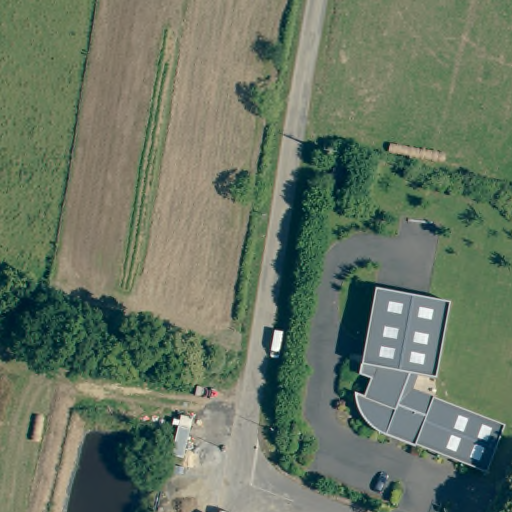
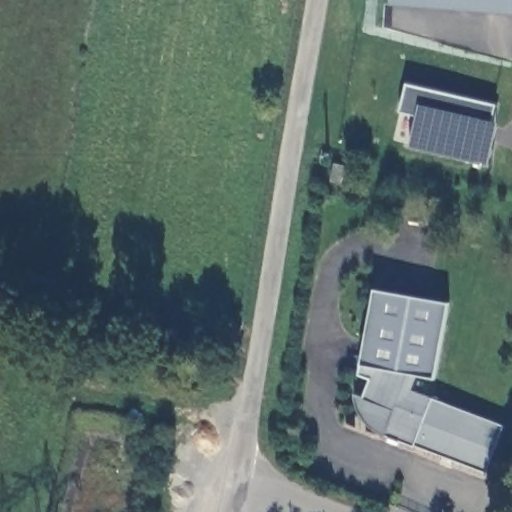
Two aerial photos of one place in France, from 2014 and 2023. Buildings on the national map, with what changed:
new [(512,0),(512,15),(392,5),(392,0),(512,0)]
new [(490,120),(498,122),(489,164),(409,146),(417,115),(400,111),(406,83),(496,104),(490,120)]
unchanged [(349,181),(338,179),(343,158),(354,160),(349,181)]
unchanged [(443,299),(429,378),(412,374),(408,388),(499,423),(482,472),(413,444),(409,447),(361,427),(347,397),(347,391),(359,395),(364,376),(354,373),(369,285),(443,299)]

